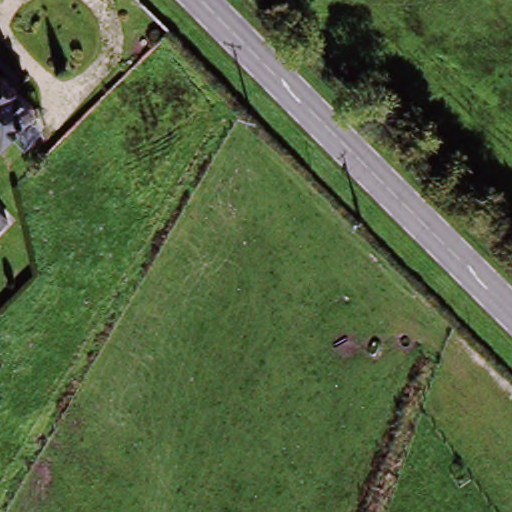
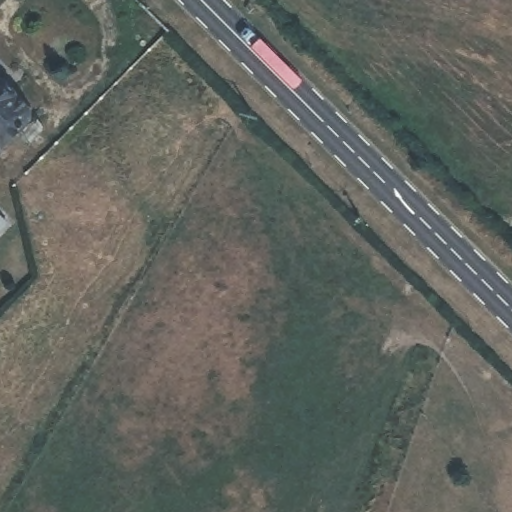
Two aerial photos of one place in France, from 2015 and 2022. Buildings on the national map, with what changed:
unchanged [(49,109),(3,152),(0,155),(0,56),(49,109)]
unchanged [(10,227),(0,236),(0,217),(10,227)]

